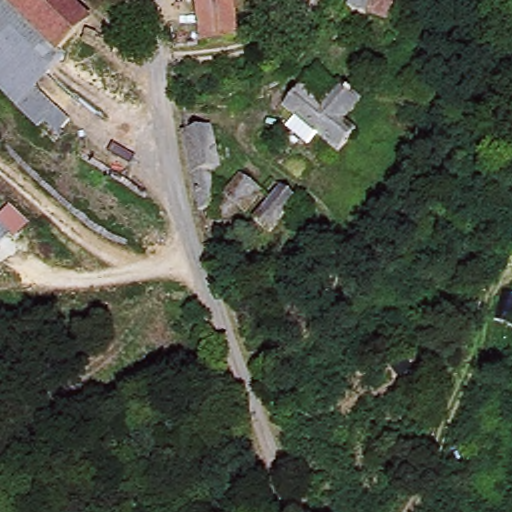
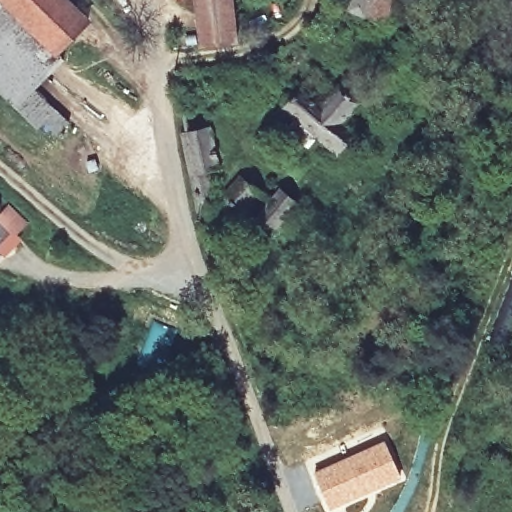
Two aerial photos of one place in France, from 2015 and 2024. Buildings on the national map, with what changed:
unchanged [(2,2),(0,1),(0,0),(4,0),(2,2)]
unchanged [(0,1),(2,2),(4,0),(62,0),(86,24),(58,54),(64,60),(39,84),(0,42),(0,1)]
unchanged [(232,41),(198,44),(196,0),(229,0),(232,41)]
unchanged [(374,0),(410,0),(424,5),(407,40),(365,22),(374,0)]
unchanged [(43,89),(37,93),(69,128),(54,141),(40,126),(29,136),(0,107),(0,42),(39,84),(43,89)]
unchanged [(322,146),(309,163),(295,152),(309,134),(279,106),(295,87),(319,106),(334,86),(352,104),(340,123),(348,131),(332,153),(322,146)]
unchanged [(177,170),(169,131),(210,128),(217,165),(207,167),(177,170)]
unchanged [(207,167),(215,203),(210,209),(187,210),(177,170),(207,167)]
unchanged [(244,214),(226,216),(217,213),(215,203),(237,174),(256,188),(266,178),(296,204),(274,234),(244,214)]
unchanged [(0,245),(0,240),(2,243),(0,245)]
new [(384,439),(402,478),(329,510),(312,472),(384,439)]

